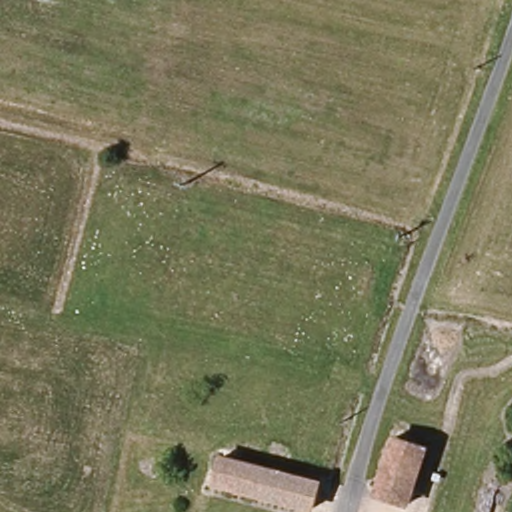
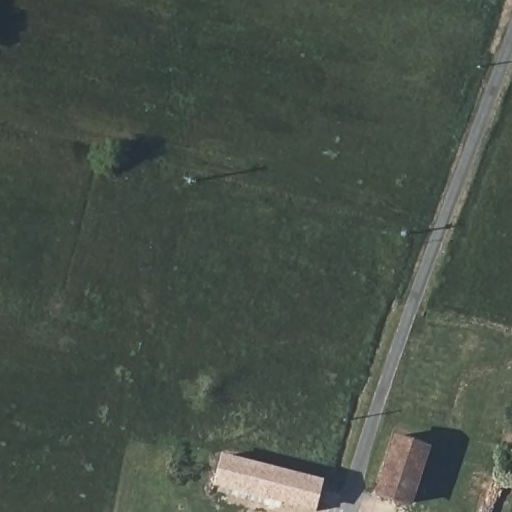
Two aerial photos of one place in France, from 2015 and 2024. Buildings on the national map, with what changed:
unchanged [(428,449),(408,504),(381,493),(401,438),(428,449)]
unchanged [(300,512),(236,487),(220,480),(228,456),(297,480),(322,489),(311,512),(300,512)]

